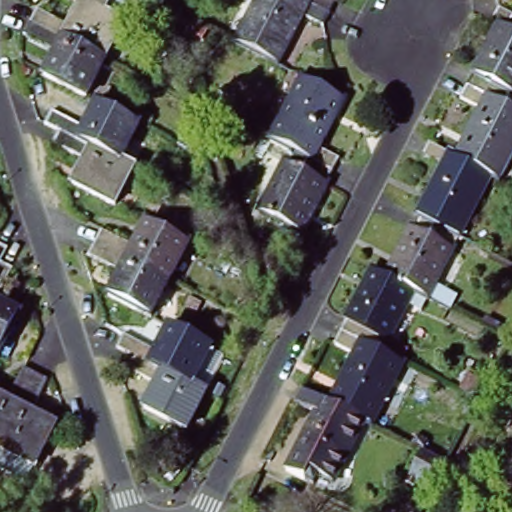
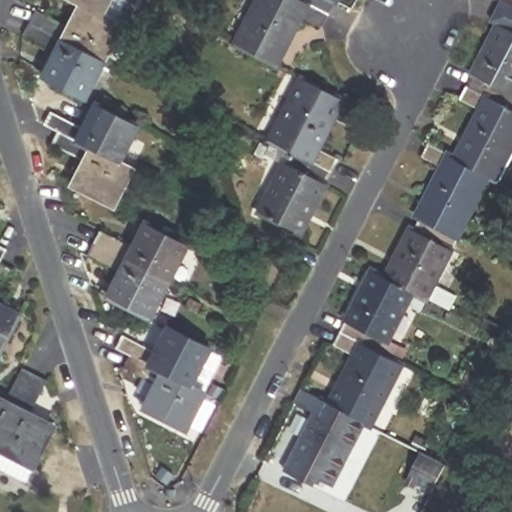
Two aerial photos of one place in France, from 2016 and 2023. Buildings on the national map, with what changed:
unchanged [(65,0),(126,0),(113,25),(80,8),(65,0)]
unchanged [(314,27),(293,16),(267,67),(227,46),(250,0),(291,0),(320,15),(314,27)]
unchanged [(320,15),(291,0),(327,0),(320,15)]
unchanged [(36,17),(67,34),(80,8),(113,25),(124,30),(105,67),(30,28),(36,17)]
unchanged [(512,20),(512,35),(503,31),(496,27),(503,15),(512,20)]
unchanged [(105,67),(85,105),(42,82),(55,57),(24,40),(30,28),(105,67)]
unchanged [(503,31),(512,35),(512,112),(473,91),(503,31)]
unchanged [(303,85),(343,106),(318,155),(339,165),(332,178),(270,147),(303,85)]
unchanged [(466,104),(473,91),(512,112),(512,163),(501,184),(495,181),(461,164),(487,115),(466,104)]
unchanged [(46,124),(51,114),(84,130),(96,105),(138,126),(118,162),(59,131),(46,124)]
unchanged [(118,162),(134,170),(114,208),(73,186),(86,161),(53,144),(59,131),(118,162)]
unchanged [(332,178),(301,239),(261,219),(285,171),(264,160),(270,147),(332,178)]
unchanged [(421,221),(447,172),(428,162),(434,150),(461,164),(495,181),(463,242),(424,224),(421,221)]
unchanged [(432,303),(417,296),(390,282),(415,235),(417,235),(424,224),(463,242),(432,303)]
unchanged [(100,232),(133,249),(146,225),(187,246),(169,281),(94,244),(100,232)]
unchanged [(150,319),(109,298),(121,272),(88,255),(94,244),(169,281),(150,319)]
unchanged [(9,253),(2,267),(0,270),(0,248),(9,253)]
unchanged [(2,267),(14,275),(0,302),(0,270),(2,267)]
unchanged [(376,275),(390,282),(417,296),(392,345),(389,343),(383,356),(345,336),(376,275)]
unchanged [(21,320),(0,360),(0,308),(21,320)]
unchanged [(136,355),(122,348),(128,338),(160,353),(173,328),(215,350),(196,386),(136,355)]
unchanged [(359,360),(338,349),(345,336),(383,356),(406,368),(375,429),(368,425),(334,408),(359,360)]
unchanged [(210,394),(191,430),(150,410),(162,385),(130,367),(136,355),(196,386),(210,394)]
unchanged [(7,405),(24,373),(36,380),(0,449),(0,402),(7,405)]
unchanged [(36,380),(49,386),(33,418),(55,430),(26,485),(0,472),(0,449),(36,380)]
unchanged [(337,485),(325,479),(319,488),(292,473),(321,418),(301,408),(308,395),(334,408),(368,425),(337,485)]
unchanged [(434,489),(428,486),(425,492),(416,487),(433,456),(447,463),(434,489)]

